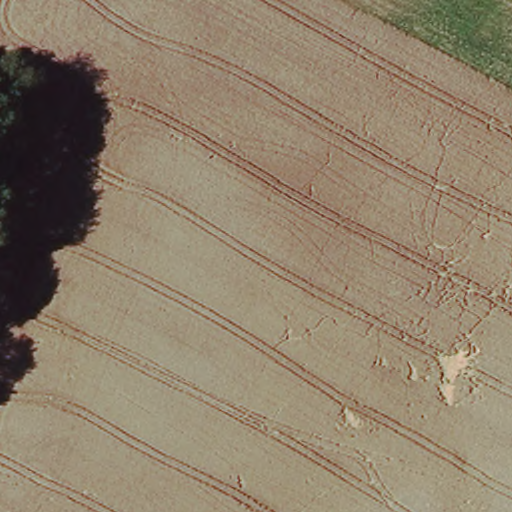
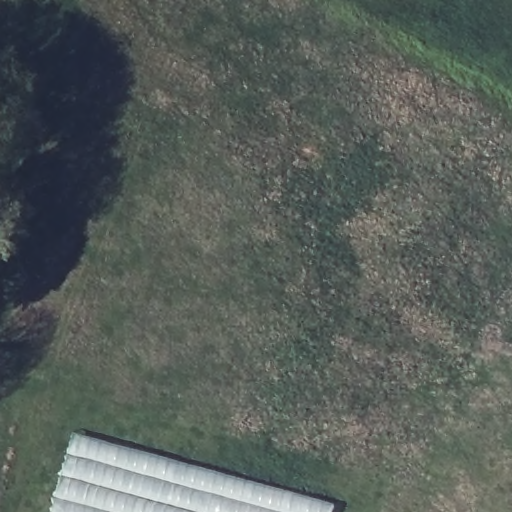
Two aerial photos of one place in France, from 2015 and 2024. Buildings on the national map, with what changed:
new [(50,506),(75,433),(213,471),(333,505),(332,512),(48,512),(50,506)]

